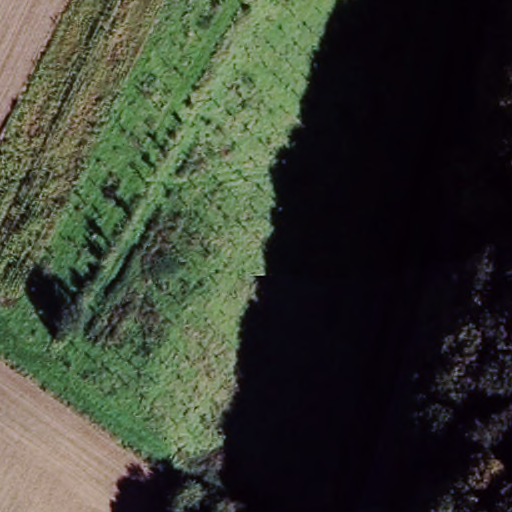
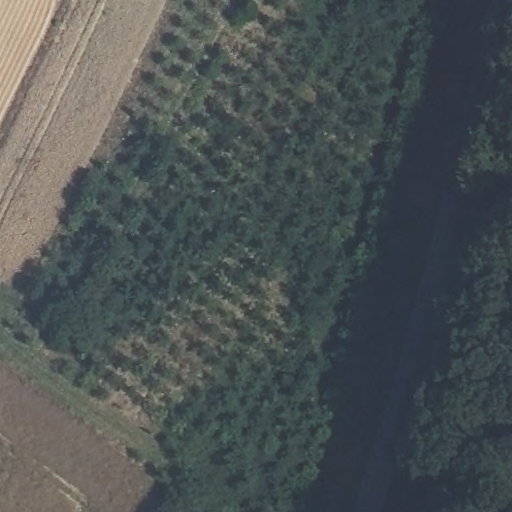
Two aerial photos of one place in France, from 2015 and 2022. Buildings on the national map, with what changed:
[]

